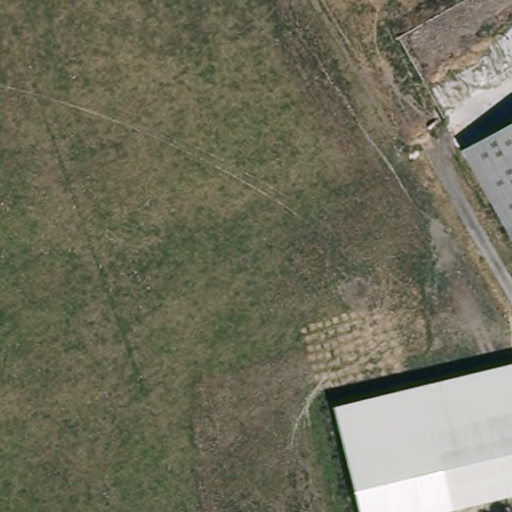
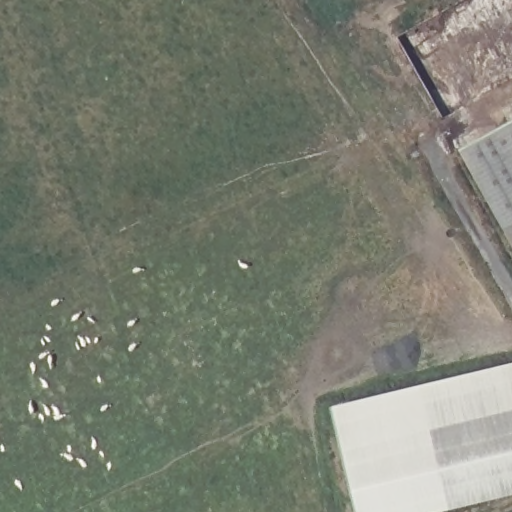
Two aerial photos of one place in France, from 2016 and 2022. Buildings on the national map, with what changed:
unchanged [(457,160),(512,122),(512,246),(505,235),(457,160)]
unchanged [(512,363),(512,494),(439,512),(359,512),(333,407),(512,363)]

